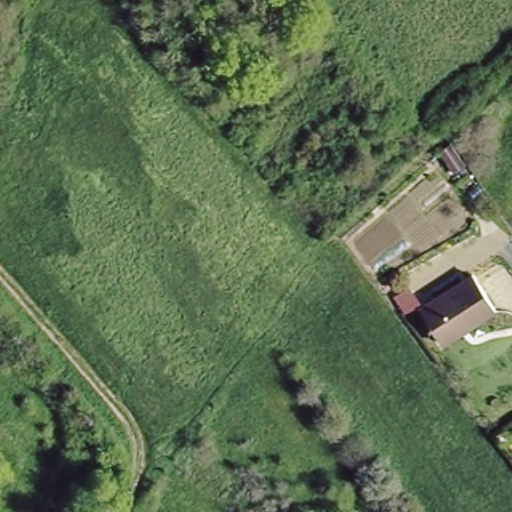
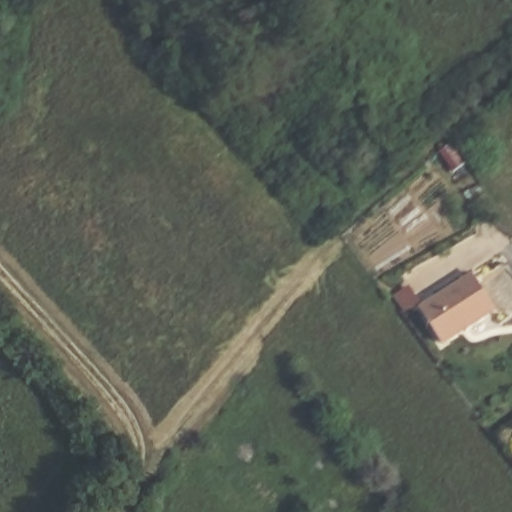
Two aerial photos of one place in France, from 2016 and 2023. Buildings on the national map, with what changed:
unchanged [(438,144),(449,135),(453,140),(466,160),(455,167),(438,144)]
unchanged [(493,305),(441,341),(417,306),(468,270),(493,305)]

